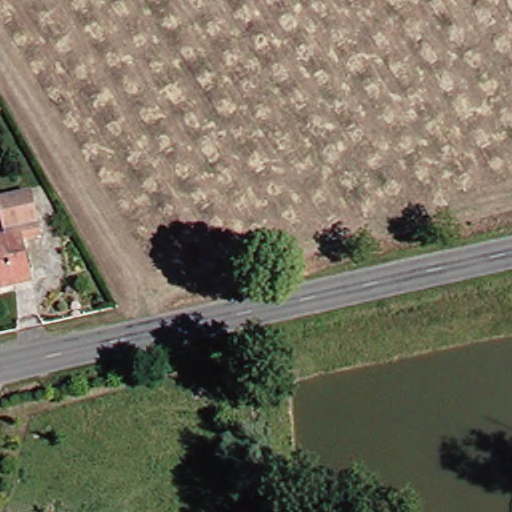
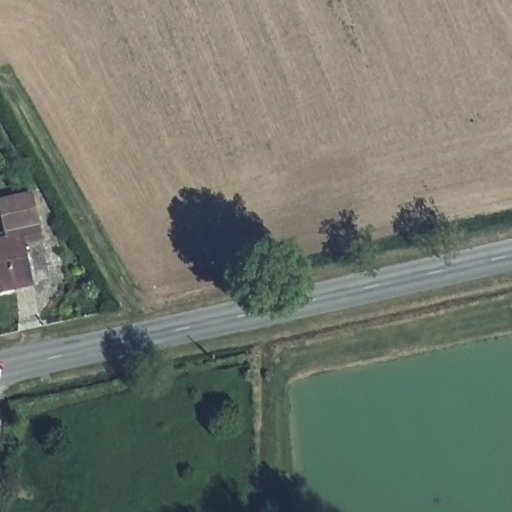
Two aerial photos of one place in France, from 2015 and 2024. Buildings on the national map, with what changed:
unchanged [(28,197),(35,242),(19,244),(22,269),(25,281),(0,285),(0,201),(28,197)]

